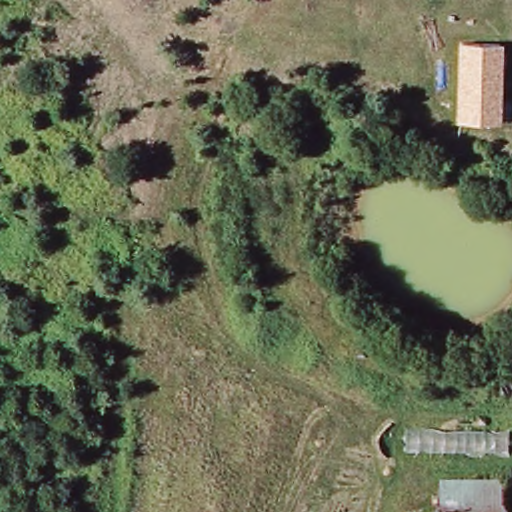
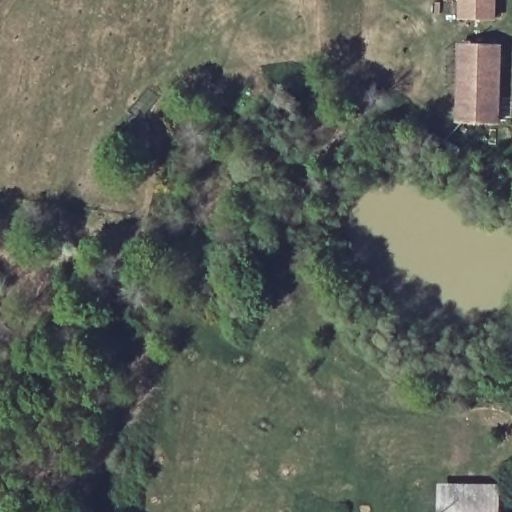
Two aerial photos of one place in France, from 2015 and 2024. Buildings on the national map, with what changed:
new [(496,19),(460,18),(460,0),(496,0),(496,19)]
unchanged [(462,46),(500,47),(498,125),(460,125),(462,46)]

